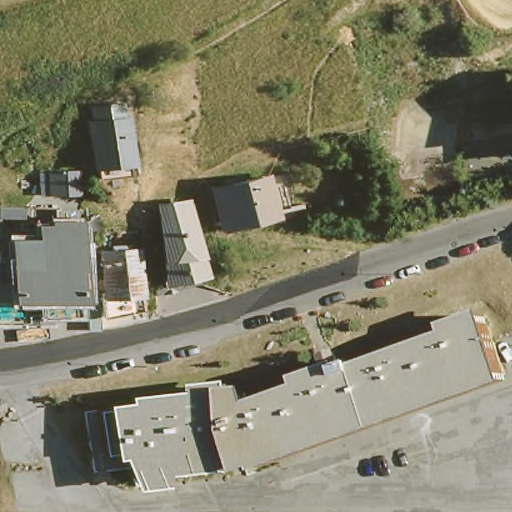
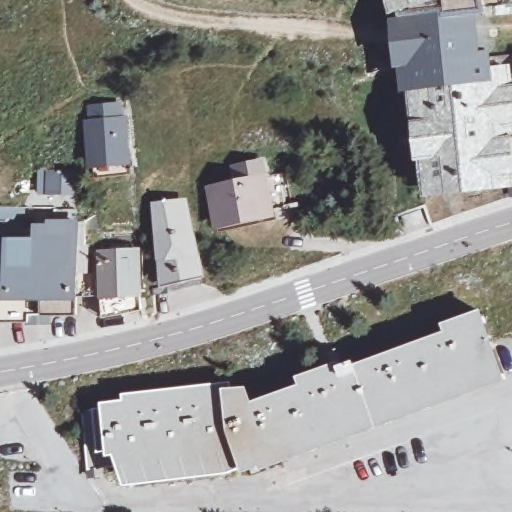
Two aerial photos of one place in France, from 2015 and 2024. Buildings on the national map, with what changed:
new [(487,14),(480,15),(483,53),(493,52),(495,68),(512,66),(512,190),(426,198),(423,163),(418,164),(412,95),(403,95),(402,70),(396,70),(393,16),(390,0),(483,0),(487,14)]
unchanged [(92,161),(90,120),(90,105),(120,104),(120,119),(122,161),(122,176),(92,177),(92,161)]
unchanged [(49,194),(48,171),(72,170),(73,193),(49,194)]
unchanged [(217,222),(210,186),(262,175),(270,211),(217,222)]
unchanged [(190,201),(207,276),(172,284),(172,272),(170,242),(165,204),(190,201)]
new [(402,217),(420,211),(423,221),(405,228),(402,217)]
unchanged [(6,240),(33,238),(35,223),(80,222),(79,301),(3,297),(6,240)]
unchanged [(101,290),(100,268),(105,268),(110,268),(110,249),(142,249),(144,294),(148,294),(149,305),(107,314),(105,290),(101,290)]
unchanged [(508,381),(255,478),(250,470),(233,475),(232,473),(218,478),(217,475),(202,480),(202,476),(190,480),(188,477),(175,482),(175,478),(145,482),(135,478),(110,480),(106,425),(257,410),(257,415),(308,393),(307,385),(359,368),(360,372),(458,338),(456,331),(488,320),(508,381)]

